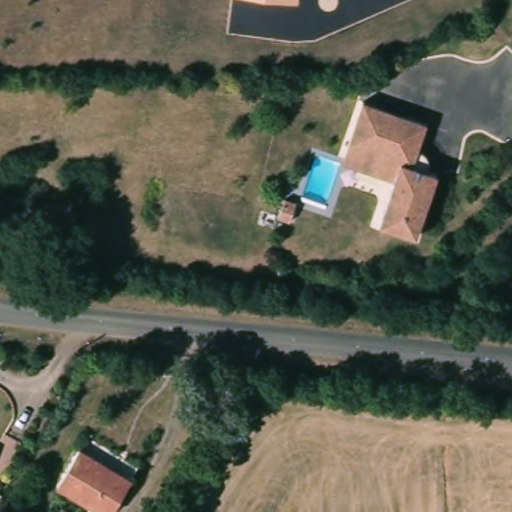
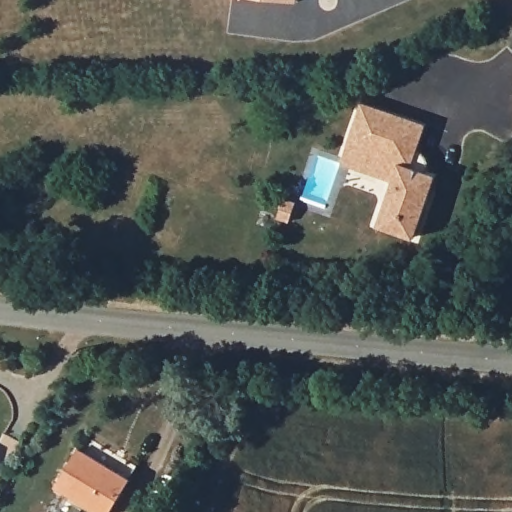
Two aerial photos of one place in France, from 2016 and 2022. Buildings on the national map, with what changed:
unchanged [(298,3),(276,0),(298,0),(298,3)]
unchanged [(424,125),(409,168),(434,176),(413,239),(374,226),(388,183),(337,165),(342,151),(360,103),(424,125)]
unchanged [(266,198),(258,215),(249,212),(257,195),(266,198)]
unchanged [(111,512),(104,512),(59,485),(79,449),(129,480),(111,512)]

